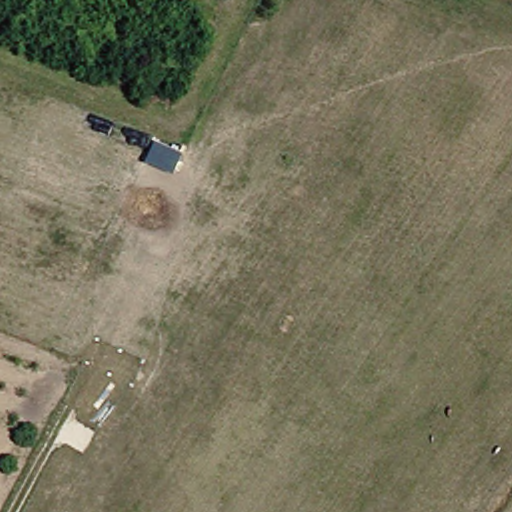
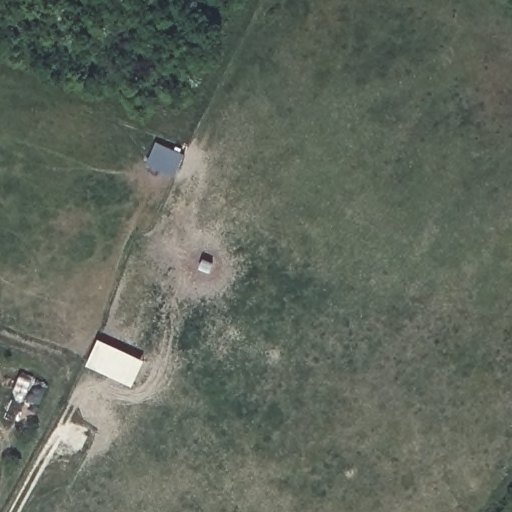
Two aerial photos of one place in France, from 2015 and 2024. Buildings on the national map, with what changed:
new [(144,361),(132,386),(85,364),(98,339),(144,361)]

